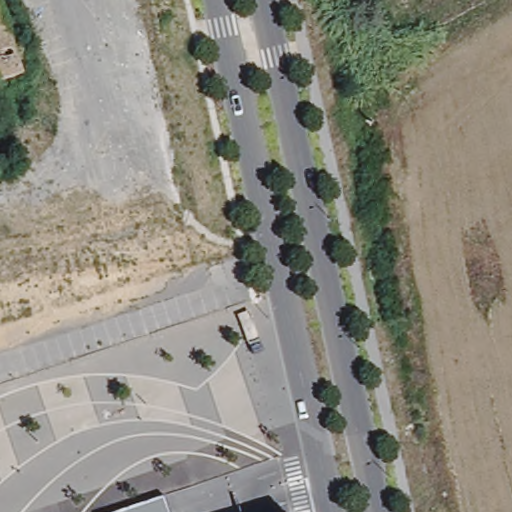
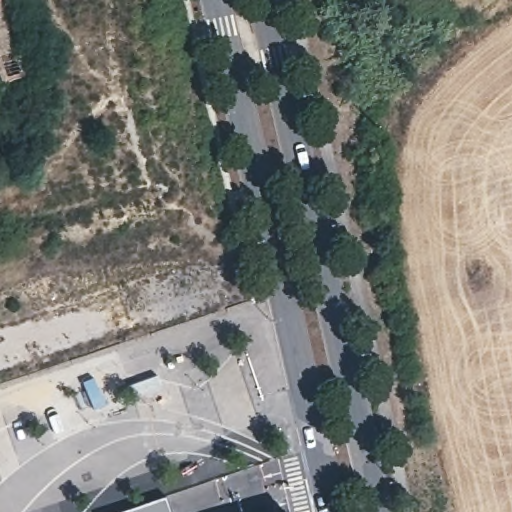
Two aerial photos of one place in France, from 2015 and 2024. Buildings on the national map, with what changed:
unchanged [(0,77),(0,0),(2,0),(25,69),(0,77)]
unchanged [(165,496),(170,512),(118,512),(165,496)]

